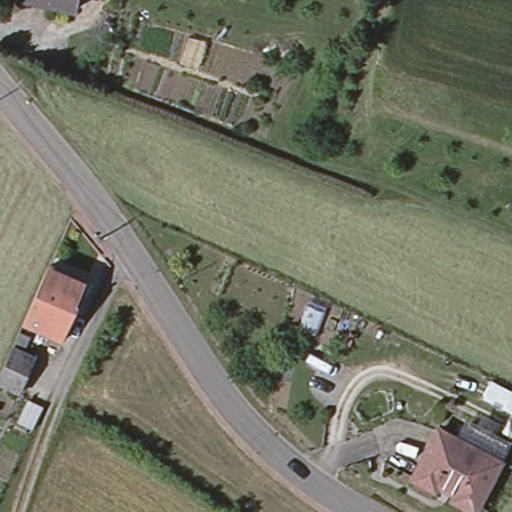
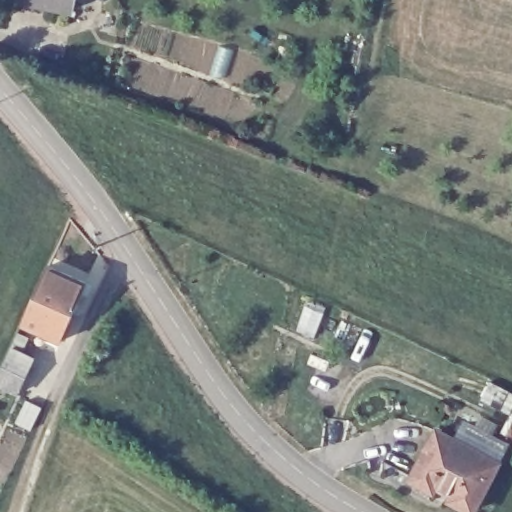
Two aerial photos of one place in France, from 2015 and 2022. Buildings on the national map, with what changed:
unchanged [(71,0),(68,14),(20,4),(21,0),(71,0)]
unchanged [(34,284),(42,266),(80,284),(55,340),(17,323),(34,284)]
unchanged [(18,393),(0,385),(0,373),(11,348),(17,333),(17,334),(27,338),(20,352),(33,359),(18,393)]
unchanged [(437,432),(498,463),(473,511),(451,499),(452,496),(436,487),(434,492),(412,479),(437,432)]

